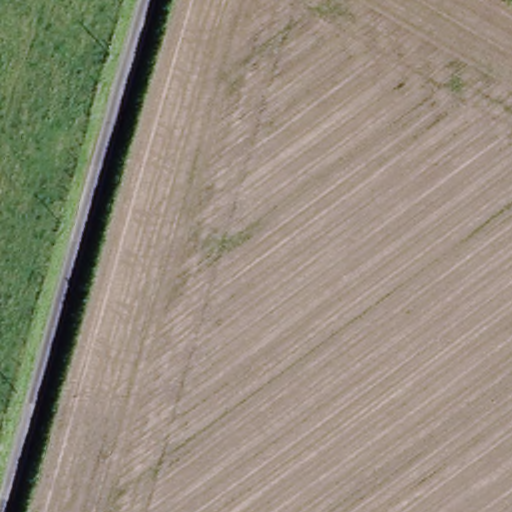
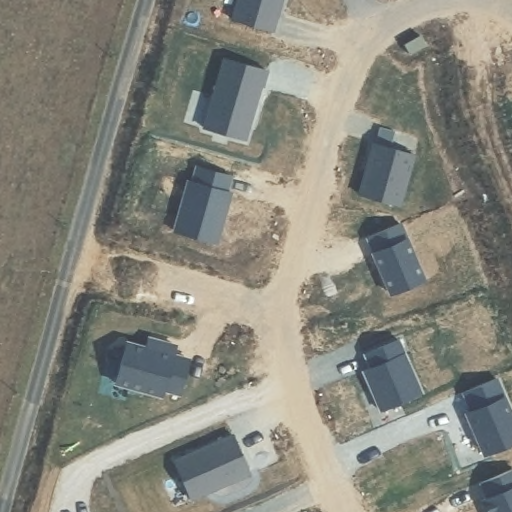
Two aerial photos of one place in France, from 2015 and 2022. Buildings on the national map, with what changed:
new [(237,0),(282,0),(273,31),(231,20),(237,0)]
new [(224,59),(267,71),(247,140),(204,128),(224,59)]
new [(373,144),(415,155),(400,206),(359,195),(373,144)]
new [(186,180),(190,182),(195,166),(231,176),(226,191),(231,192),(216,244),(172,231),(186,180)]
new [(400,224),(425,280),(390,295),(373,253),(374,252),(367,237),(400,224)]
new [(371,368),(365,355),(398,340),(421,393),(380,411),(363,371),(371,368)]
new [(126,342),(145,347),(156,350),(159,341),(175,345),(173,355),(189,360),(179,395),(163,390),(161,396),(115,383),(126,342)]
new [(512,416),(512,443),(484,455),(466,413),(471,411),(463,392),(496,378),(512,416)]
new [(232,435),(250,475),(191,500),(174,461),(232,435)]
new [(512,512),(488,512),(482,500),(487,498),(481,482),(512,469),(512,512)]

